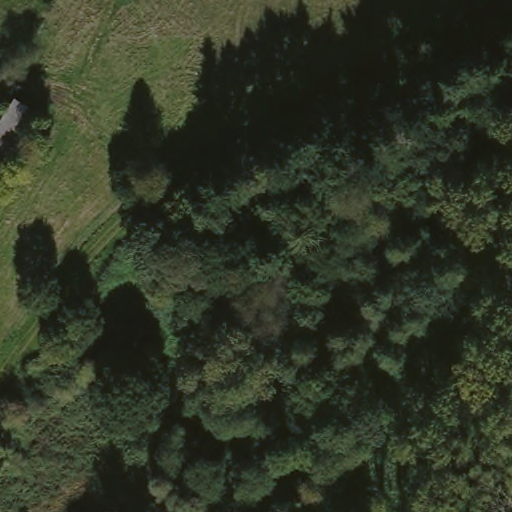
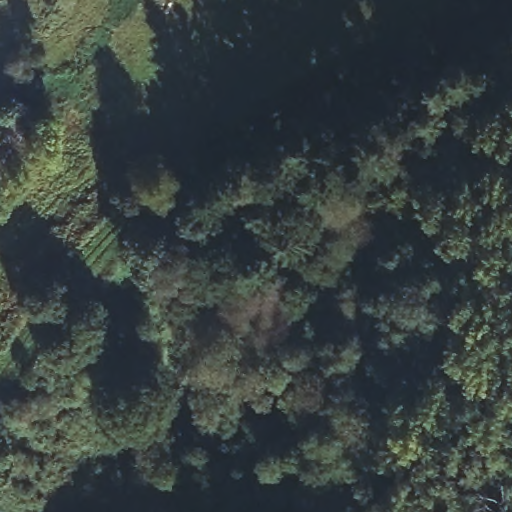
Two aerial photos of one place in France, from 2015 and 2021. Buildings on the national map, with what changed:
unchanged [(48,126),(0,189),(0,127),(17,104),(48,126)]

